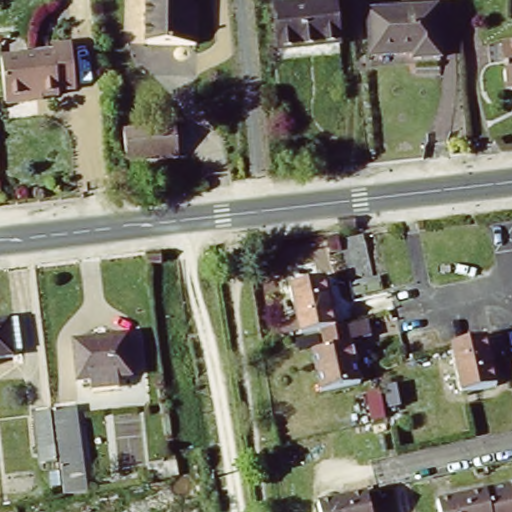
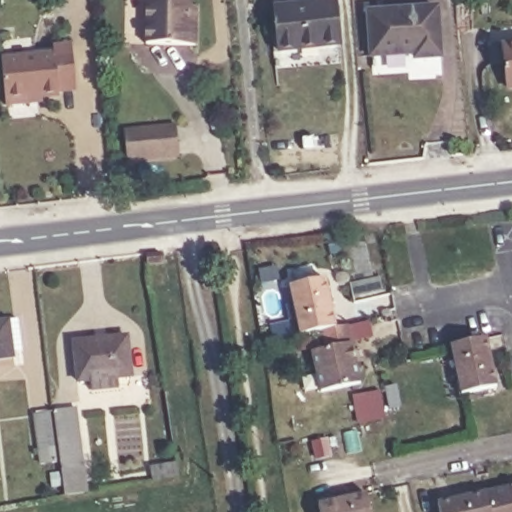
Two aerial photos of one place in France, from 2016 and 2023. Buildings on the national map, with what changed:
unchanged [(191,11),(197,11),(196,50),(145,48),(147,0),(191,0),(191,11)]
unchanged [(326,1),(330,45),(270,51),(265,8),(326,1)]
unchanged [(410,53),(409,48),(366,51),(363,7),(432,3),(435,51),(410,53)]
unchanged [(508,88),(505,62),(491,63),(488,45),(502,44),(503,45),(512,44),(512,88),(508,88)]
unchanged [(72,99),(55,101),(55,105),(25,108),(25,112),(2,114),(0,94),(0,68),(50,63),(50,56),(68,54),(72,99)]
unchanged [(176,122),(179,153),(127,158),(125,127),(176,122)]
unchanged [(365,234),(365,237),(374,278),(380,276),(383,290),(353,296),(340,240),(365,234)]
unchanged [(161,252),(162,263),(147,264),(147,254),(161,252)]
unchanged [(320,273),(330,322),(317,325),(295,330),(285,281),(320,273)]
unchanged [(12,351),(3,352),(4,357),(0,358),(0,320),(8,319),(12,351)]
unchanged [(330,322),(343,320),(355,378),(316,387),(307,346),(320,344),(317,325),(330,322)]
unchanged [(127,331),(132,371),(118,372),(119,382),(92,385),(92,375),(78,376),(75,337),(127,331)]
unchanged [(477,333),(487,382),(452,389),(442,340),(477,333)]
unchanged [(76,408),(87,492),(65,495),(54,411),(76,408)]
unchanged [(51,411),(57,461),(42,463),(35,413),(51,411)]
unchanged [(177,461),(179,475),(153,480),(150,466),(177,461)]
unchanged [(492,512),(487,487),(512,482),(512,512),(492,512)]
unchanged [(492,512),(441,512),(438,498),(487,487),(492,512)]
unchanged [(361,512),(310,512),(308,505),(357,494),(361,512)]

